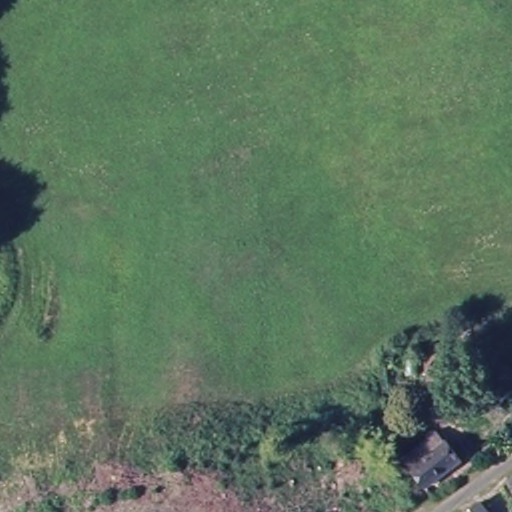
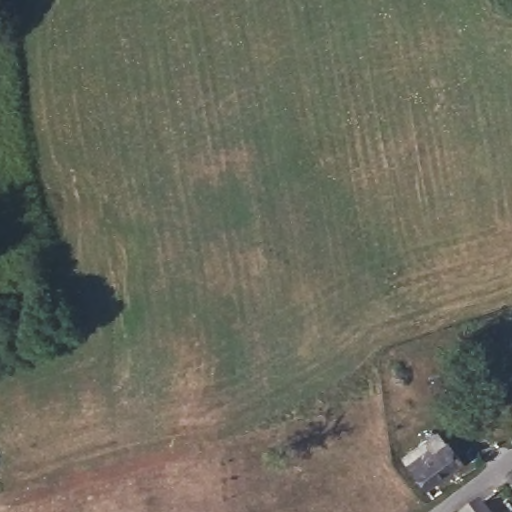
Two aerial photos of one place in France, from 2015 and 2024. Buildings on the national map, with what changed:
unchanged [(464,466),(429,491),(412,468),(407,459),(442,436),(449,444),(464,466)]
unchanged [(512,490),(507,483),(512,479),(512,490)]
unchanged [(482,504),(488,512),(473,512),(482,504)]

